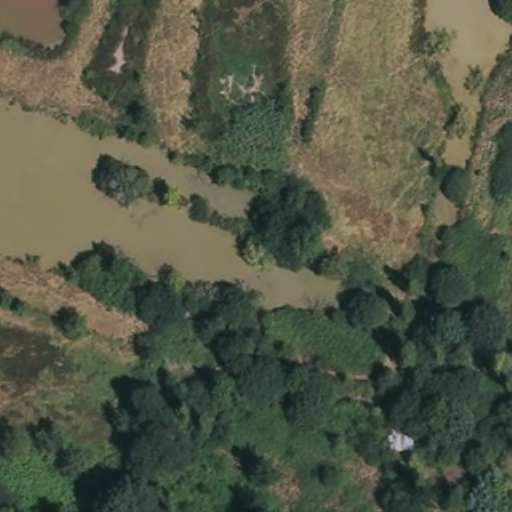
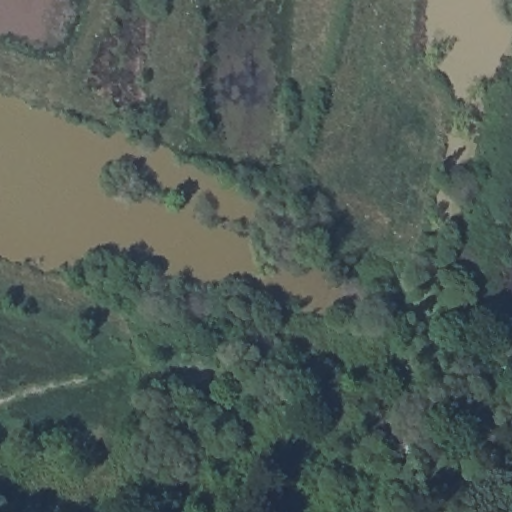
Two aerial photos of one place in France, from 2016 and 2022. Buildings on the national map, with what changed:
unchanged [(414,416),(414,454),(386,454),(387,416),(414,416)]

